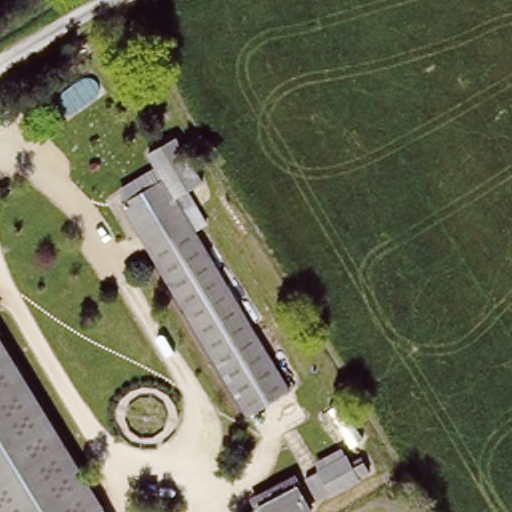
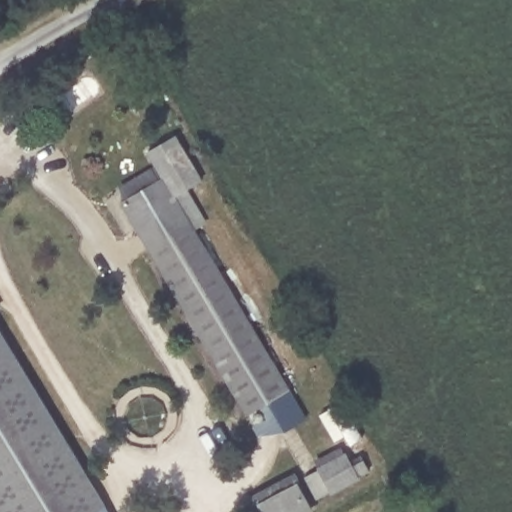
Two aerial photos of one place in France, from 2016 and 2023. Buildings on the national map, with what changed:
unchanged [(200,180),(171,198),(288,389),(250,412),(120,202),(160,177),(145,152),(172,135),(200,180)]
unchanged [(153,167),(160,177),(125,199),(118,188),(153,167)]
unchanged [(208,223),(192,233),(171,198),(188,188),(208,223)]
unchanged [(0,309),(0,306),(1,308),(0,309)]
unchanged [(0,334),(105,512),(0,512),(0,334)]
unchanged [(342,402),(360,435),(345,442),(326,407),(342,402)]
unchanged [(345,450),(353,462),(362,457),(372,474),(318,504),(305,474),(345,450)]
unchanged [(293,472),(313,512),(262,512),(253,493),(293,472)]

